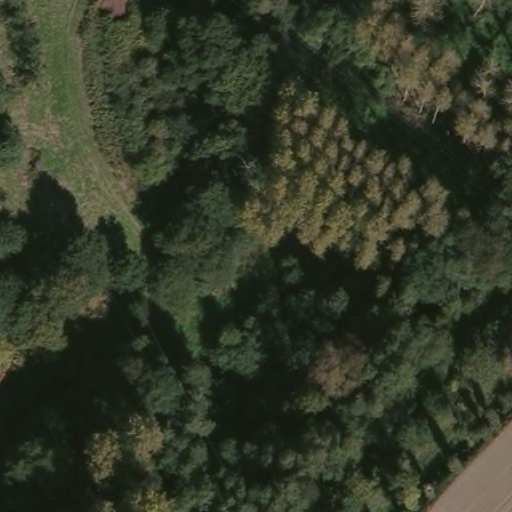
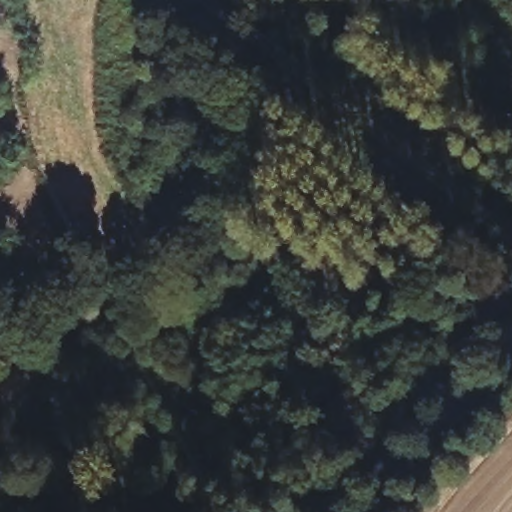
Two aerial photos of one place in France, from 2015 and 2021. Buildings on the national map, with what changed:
[]

